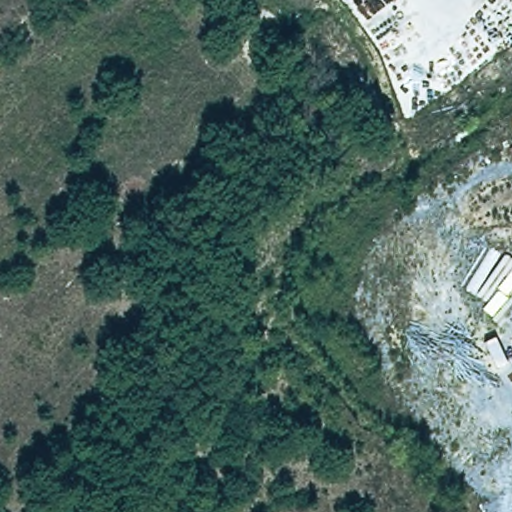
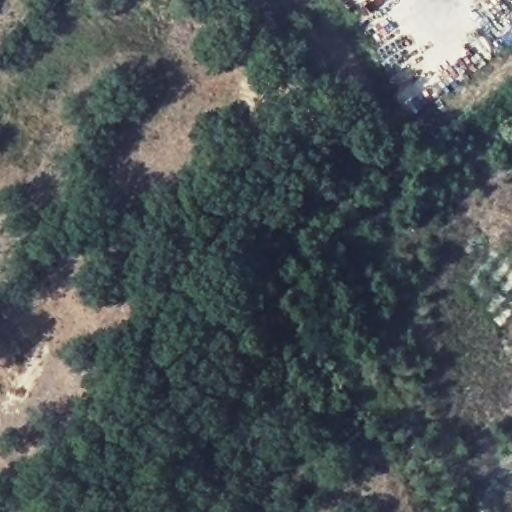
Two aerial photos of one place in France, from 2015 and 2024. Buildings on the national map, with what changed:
[]

